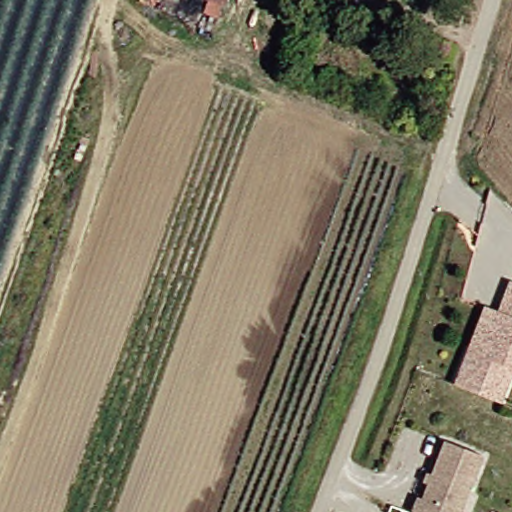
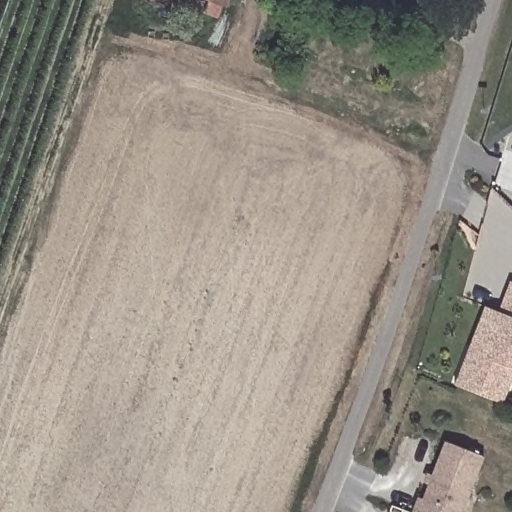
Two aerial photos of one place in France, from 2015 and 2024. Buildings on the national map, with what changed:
unchanged [(218,16),(202,9),(206,0),(224,0),(218,16)]
unchanged [(448,42),(442,66),(423,61),(431,37),(448,42)]
unchanged [(497,410),(449,392),(462,357),(478,313),(493,317),(505,287),(512,290),(512,377),(508,376),(497,410)]
unchanged [(462,512),(412,512),(417,497),(423,499),(442,440),(482,454),(462,512)]

